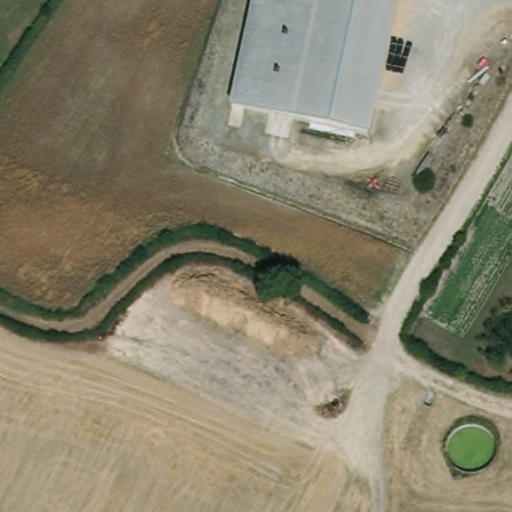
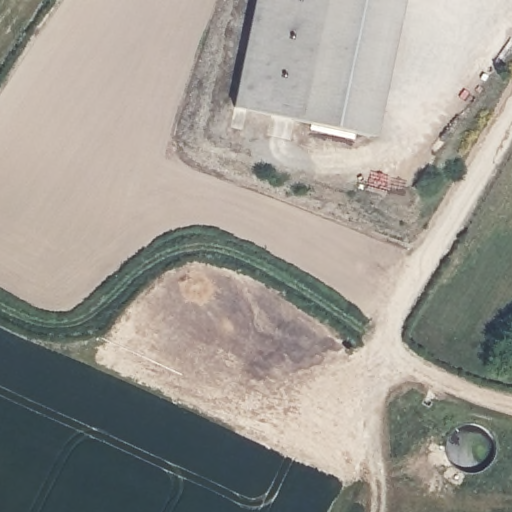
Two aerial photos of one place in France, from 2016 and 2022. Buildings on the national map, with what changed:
unchanged [(371,139),(230,107),(252,0),(398,0),(371,139)]

